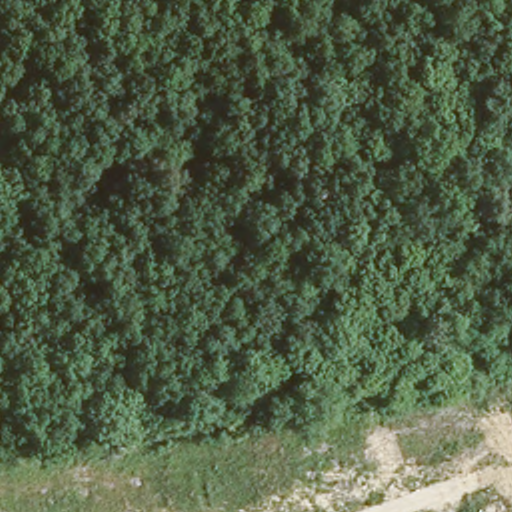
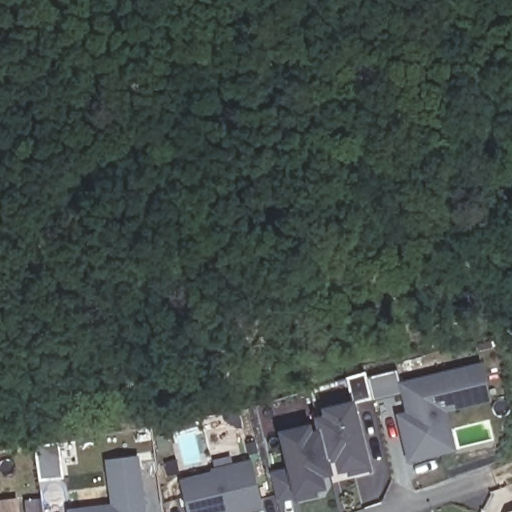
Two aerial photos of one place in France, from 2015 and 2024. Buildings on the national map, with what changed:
new [(447,412),(457,453),(407,465),(396,415),(405,412),(401,396),(374,402),(368,378),(398,372),(401,382),(482,363),(492,402),(447,412)]
new [(369,466),(369,473),(349,477),(349,472),(337,474),(335,463),(330,463),(333,476),(323,478),(325,490),(325,495),(280,505),(272,473),(288,470),(279,432),(312,425),(313,432),(318,431),(315,417),(323,416),(322,409),(354,402),(369,466)]
new [(60,442),(64,478),(39,480),(36,445),(60,442)]
new [(108,460),(136,457),(143,512),(71,512),(70,510),(113,505),(108,460)]
new [(187,512),(179,478),(211,472),(210,469),(252,460),(264,510),(255,512),(187,512)]
new [(20,512),(0,512),(0,500),(19,498),(20,512)]
new [(509,512),(512,511),(512,512),(509,512)]

